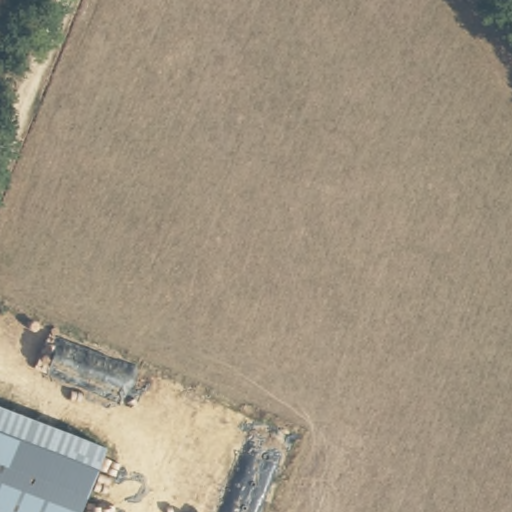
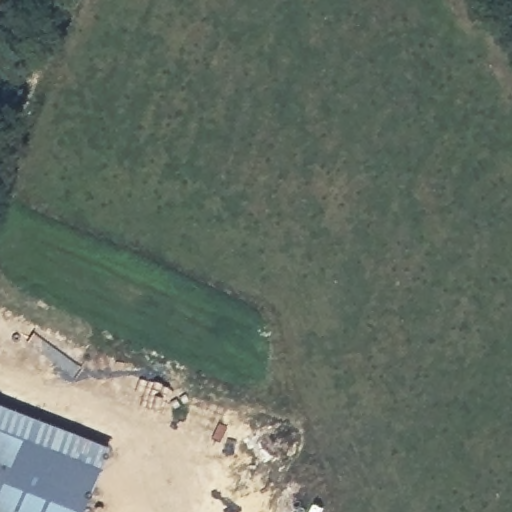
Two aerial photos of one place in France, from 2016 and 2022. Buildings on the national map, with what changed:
unchanged [(79,509),(78,512),(0,512),(0,405),(104,444),(79,509)]

